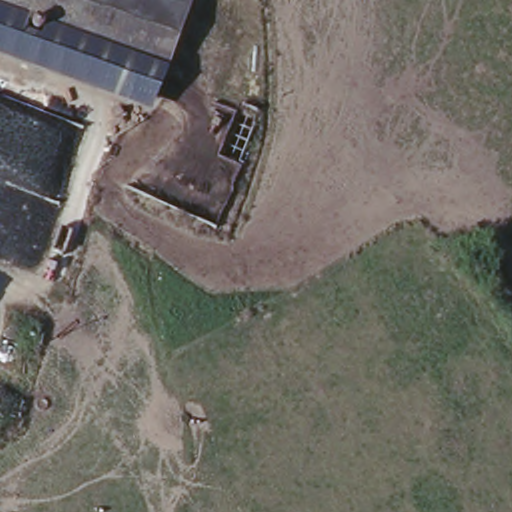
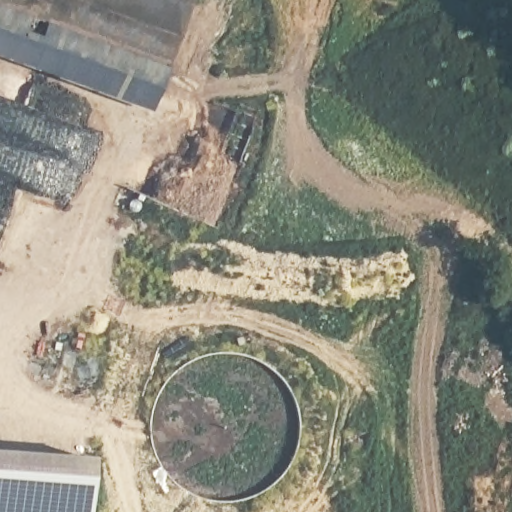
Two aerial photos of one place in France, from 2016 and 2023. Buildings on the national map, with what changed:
unchanged [(152,110),(0,52),(0,0),(197,0),(152,110)]
unchanged [(512,209),(512,231),(500,216),(512,209)]
unchanged [(458,242),(478,230),(492,249),(483,257),(476,261),(458,242)]
new [(90,448),(86,512),(0,512),(0,443),(90,448)]

